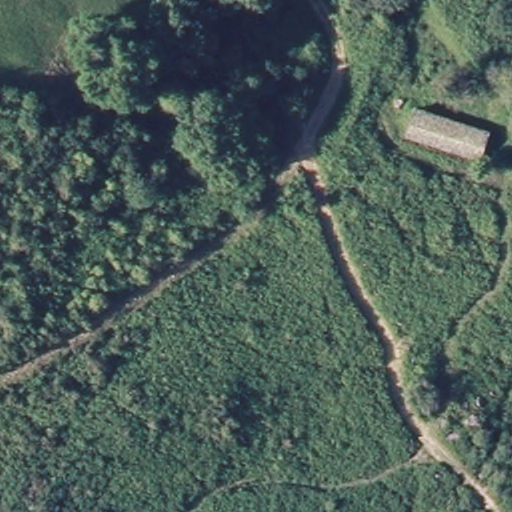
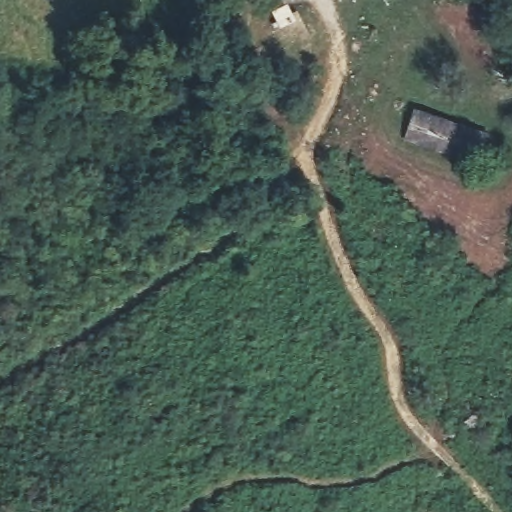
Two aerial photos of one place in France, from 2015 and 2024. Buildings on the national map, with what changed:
unchanged [(410,138),(419,113),(480,136),(472,162),(410,138)]

